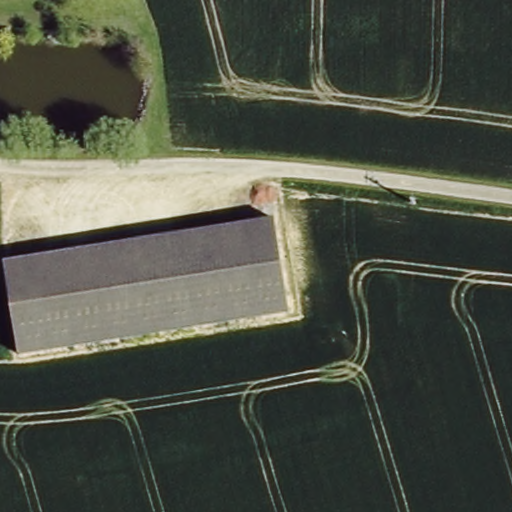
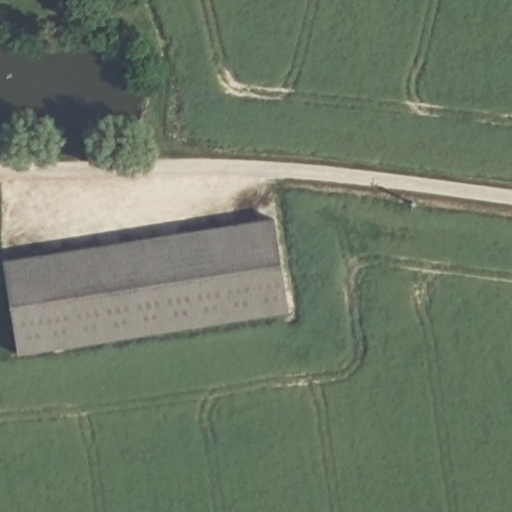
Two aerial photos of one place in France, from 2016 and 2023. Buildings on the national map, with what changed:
unchanged [(4,259),(273,217),(291,312),(18,356),(4,259)]

